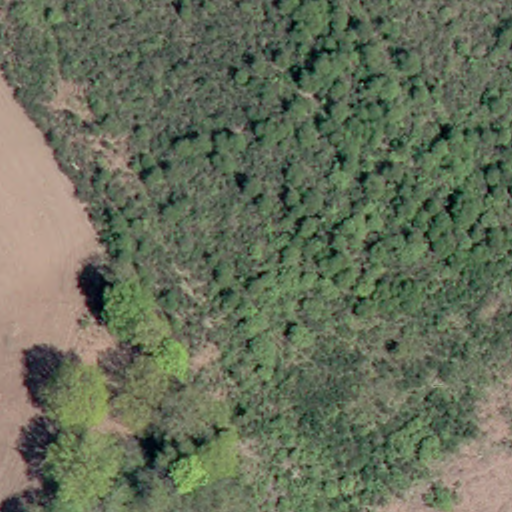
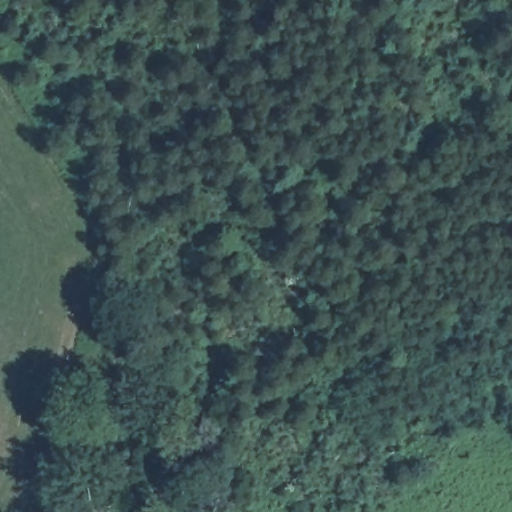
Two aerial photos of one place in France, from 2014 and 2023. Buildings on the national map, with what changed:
[]

